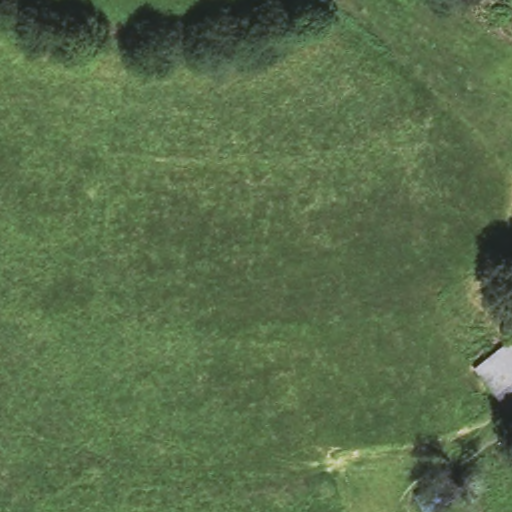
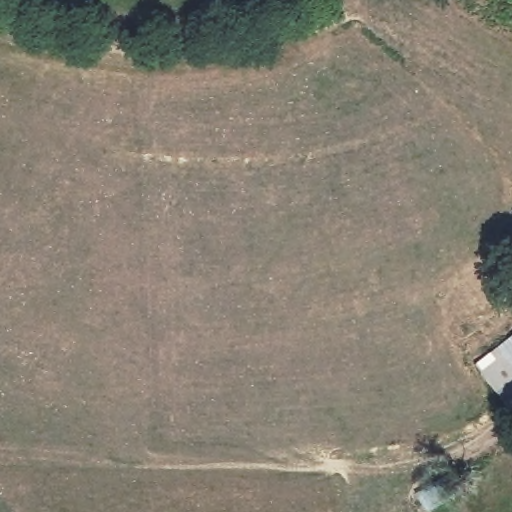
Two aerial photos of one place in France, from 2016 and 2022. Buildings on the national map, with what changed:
unchanged [(500,404),(468,364),(512,331),(512,394),(500,404)]
unchanged [(461,492),(423,512),(415,492),(450,471),(461,492)]

